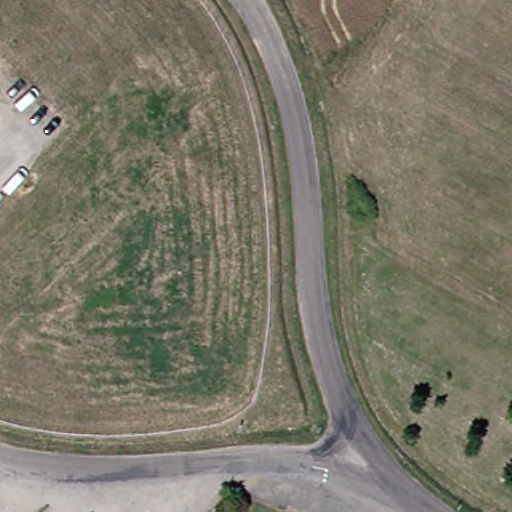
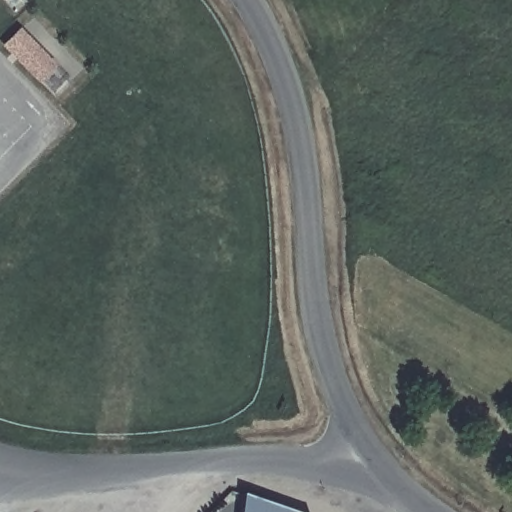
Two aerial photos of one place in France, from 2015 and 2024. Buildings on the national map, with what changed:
new [(57,100),(2,45),(20,27),(75,82),(57,100)]
new [(294,511),(293,512),(241,512),(243,494),(294,511)]

